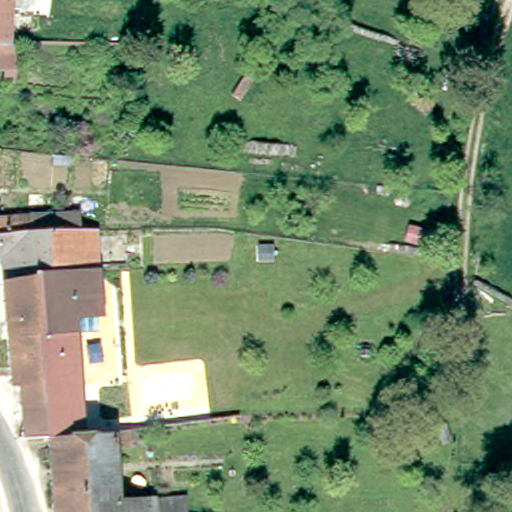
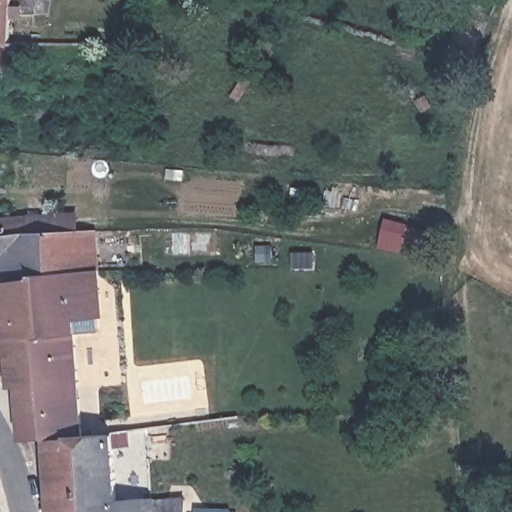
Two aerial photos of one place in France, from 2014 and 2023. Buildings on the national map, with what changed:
unchanged [(28,36),(14,37),(0,38),(0,0),(29,0),(29,9),(28,36)]
unchanged [(9,97),(8,74),(0,74),(0,38),(14,37),(15,96),(9,97)]
unchanged [(7,279),(0,280),(0,234),(12,233),(11,217),(31,216),(31,219),(31,231),(58,229),(96,226),(100,266),(104,306),(75,308),(83,428),(52,430),(50,430),(28,431),(25,377),(16,377),(7,279)]
unchanged [(50,430),(52,430),(83,428),(110,427),(119,426),(126,425),(126,442),(110,442),(112,497),(150,497),(150,499),(180,499),(180,512),(55,512),(50,430)]

